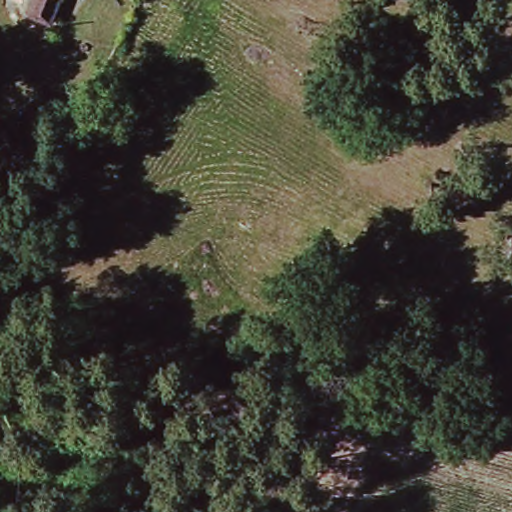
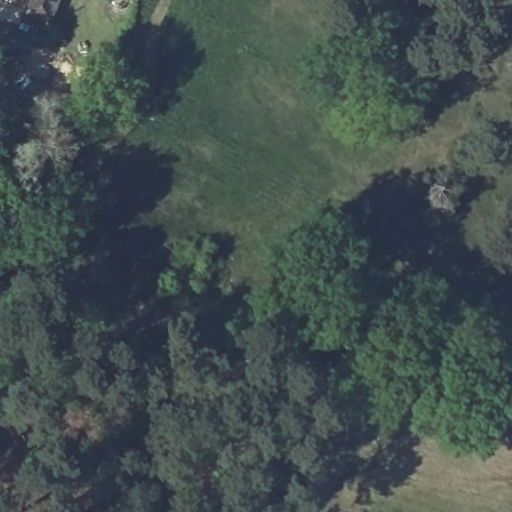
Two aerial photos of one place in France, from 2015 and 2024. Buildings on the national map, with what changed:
unchanged [(22,11),(28,0),(55,0),(46,21),(22,11)]

